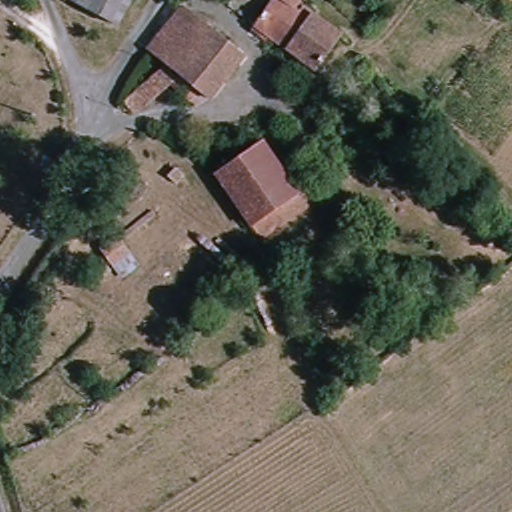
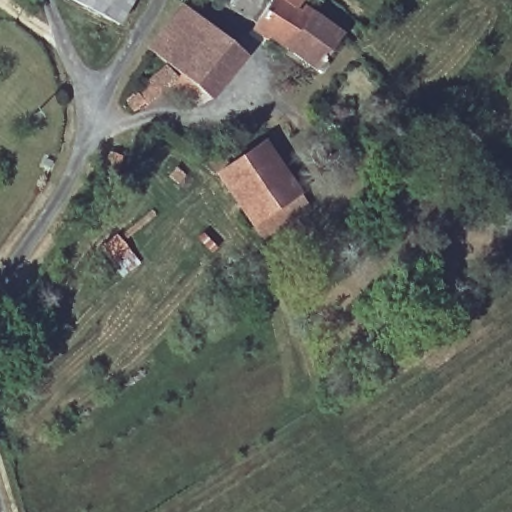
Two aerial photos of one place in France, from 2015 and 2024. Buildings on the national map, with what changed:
unchanged [(116,23),(73,0),(129,0),(116,23)]
unchanged [(231,10),(238,0),(268,0),(252,24),(231,10)]
unchanged [(276,0),(316,0),(309,10),(318,17),(292,54),(257,29),(276,0)]
unchanged [(176,2),(236,53),(199,94),(192,88),(184,94),(167,80),(148,102),(150,107),(141,115),(129,105),(140,93),(145,93),(164,71),(173,69),(141,45),(176,2)]
unchanged [(343,34),(324,61),(333,67),(325,78),(292,54),(318,17),(343,34)]
unchanged [(296,196),(252,228),(216,177),(259,145),(296,196)]
unchanged [(100,171),(106,157),(117,161),(111,175),(100,171)]

